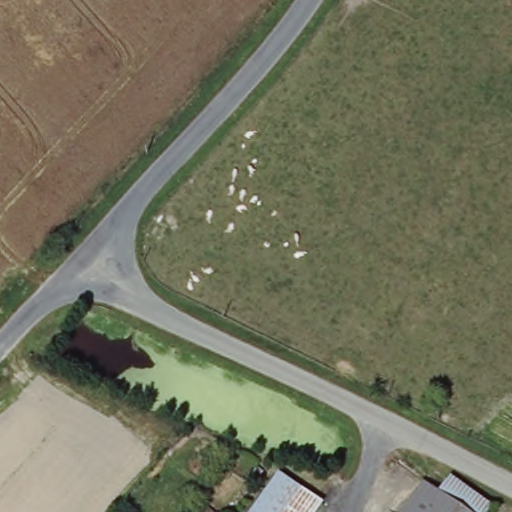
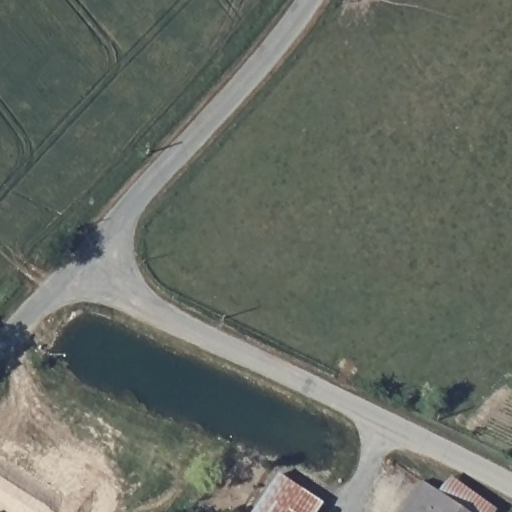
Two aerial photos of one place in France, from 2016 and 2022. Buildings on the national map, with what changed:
unchanged [(326,505),(321,512),(257,512),(283,475),(326,505)]
unchanged [(500,509),(498,512),(469,512),(466,510),(440,491),(451,475),(500,509)]
unchanged [(440,491),(466,510),(469,512),(403,512),(424,481),(440,491)]
unchanged [(223,512),(204,512),(211,504),(221,511),(223,512)]

